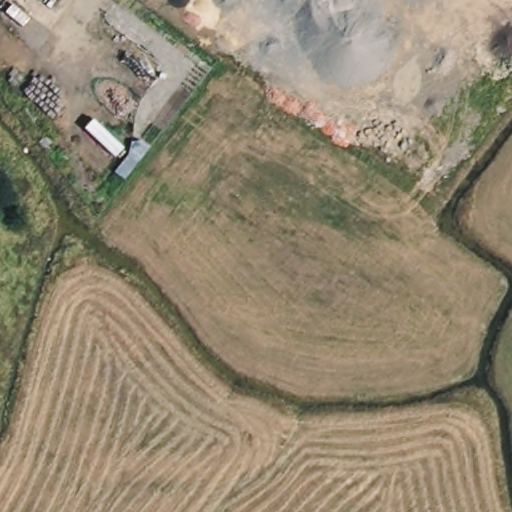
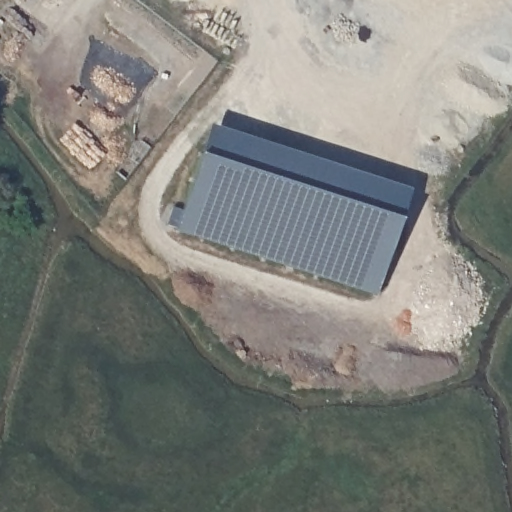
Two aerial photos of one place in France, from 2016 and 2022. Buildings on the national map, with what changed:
new [(401,224),(373,300),(175,228),(166,224),(172,208),(181,211),(203,153),(401,224)]

